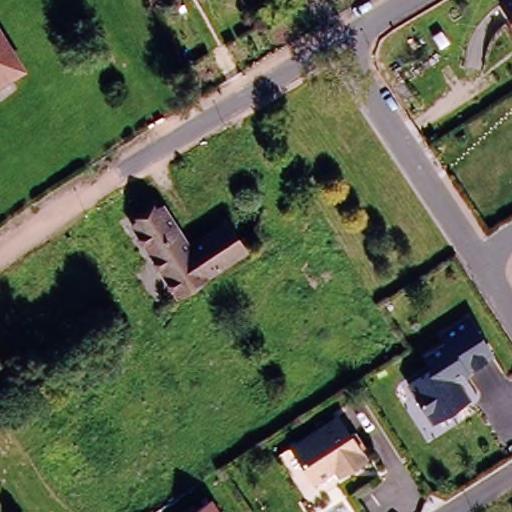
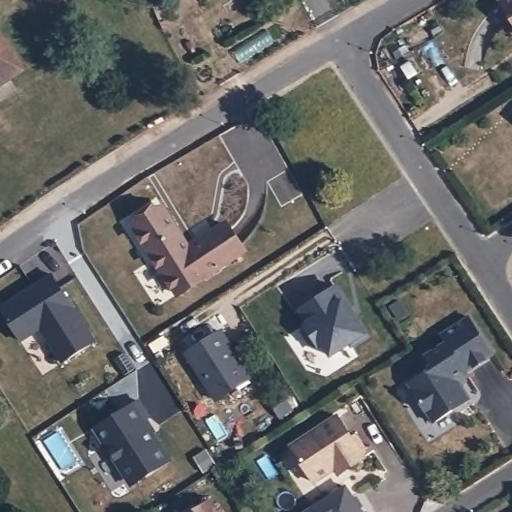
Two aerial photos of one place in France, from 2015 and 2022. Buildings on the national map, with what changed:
unchanged [(512,29),(497,5),(505,0),(512,0),(512,29)]
unchanged [(24,72),(0,87),(0,35),(24,72)]
unchanged [(164,279),(132,229),(163,210),(185,245),(227,219),(250,252),(208,279),(177,299),(164,279)]
new [(48,276),(94,341),(61,364),(39,330),(20,344),(0,315),(0,311),(48,276)]
new [(336,283),(340,290),(338,292),(349,307),(351,306),(368,333),(367,334),(351,344),(349,341),(330,354),(322,341),(318,344),(311,343),(302,330),(304,323),(307,320),(300,308),(336,283)]
unchanged [(463,319),(487,357),(461,374),(463,378),(453,384),(464,401),(427,425),(402,386),(428,370),(420,357),(440,344),(435,336),(463,319)]
new [(217,327),(227,341),(225,342),(249,380),(216,401),(183,349),(217,327)]
new [(135,401),(145,417),(140,421),(145,430),(147,430),(167,461),(132,483),(125,482),(91,430),(135,401)]
unchanged [(331,470),(309,484),(285,448),(334,417),(362,459),(343,471),(335,476),(331,470)]
unchanged [(191,512),(205,503),(211,512),(191,512)]

